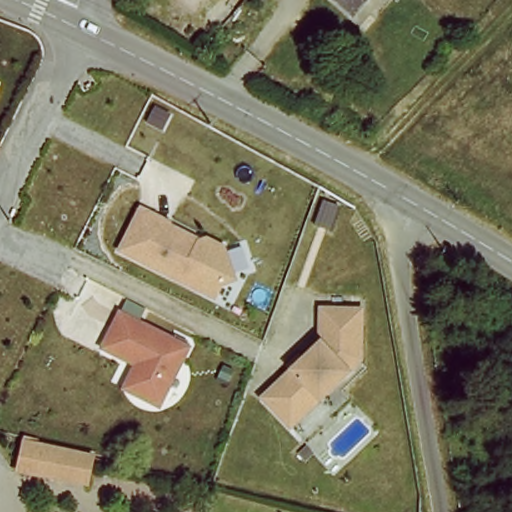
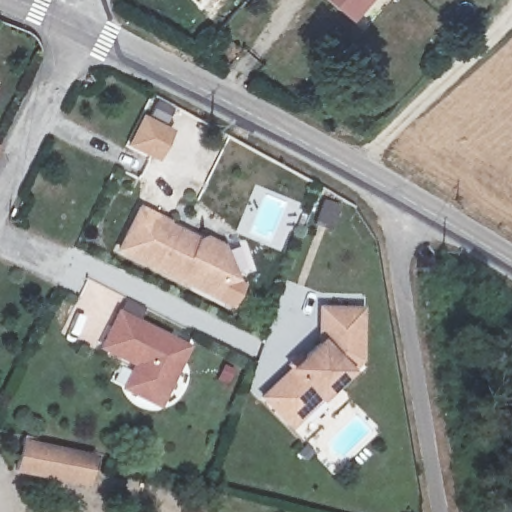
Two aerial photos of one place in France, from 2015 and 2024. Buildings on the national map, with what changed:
unchanged [(350,20),(328,0),(367,0),(350,20)]
new [(150,117),(154,108),(170,116),(166,125),(173,130),(157,162),(127,144),(143,118),(150,117)]
unchanged [(200,244),(201,243),(217,251),(231,251),(233,284),(220,285),(213,298),(185,283),(120,248),(142,208),(169,223),(168,225),(191,238),(197,241),(200,244)]
unchanged [(294,425),(259,389),(320,338),(318,301),(364,301),(368,361),(294,425)]
unchanged [(138,364),(105,345),(123,312),(181,343),(190,348),(178,371),(159,404),(130,389),(126,386),(138,364)]
unchanged [(8,473),(16,441),(91,461),(81,492),(8,473)]

